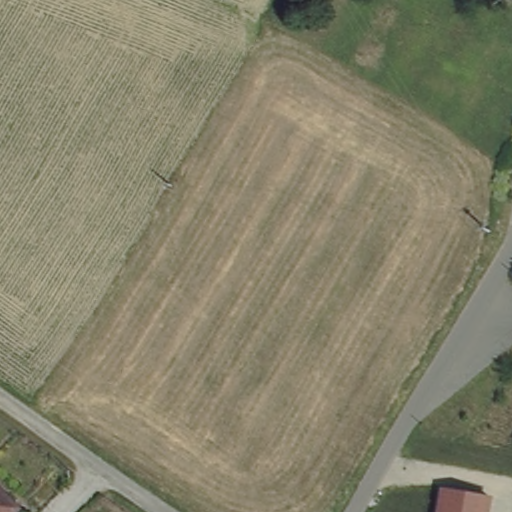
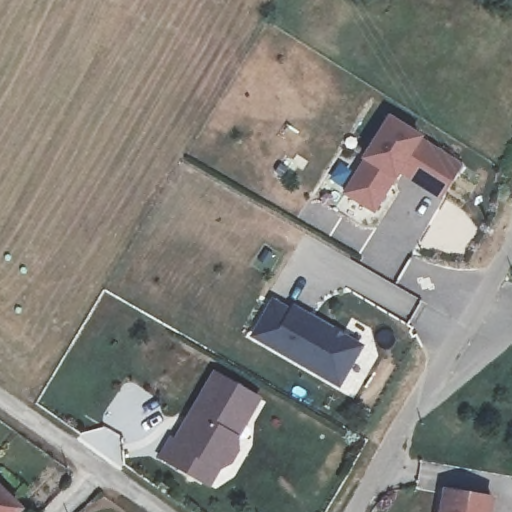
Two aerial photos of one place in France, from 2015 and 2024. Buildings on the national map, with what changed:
new [(341,193),(387,115),(422,136),(419,141),(462,164),(441,201),(397,176),(373,214),(341,193)]
new [(271,298),(289,308),(291,303),(363,346),(338,388),(248,336),(271,298)]
new [(156,457),(168,435),(173,438),(211,370),(261,398),(238,437),(237,454),(230,466),(218,470),(208,488),(156,457)]
unchanged [(18,512),(0,512),(0,481),(25,504),(18,512)]
unchanged [(490,512),(436,512),(440,489),(494,498),(490,512)]

